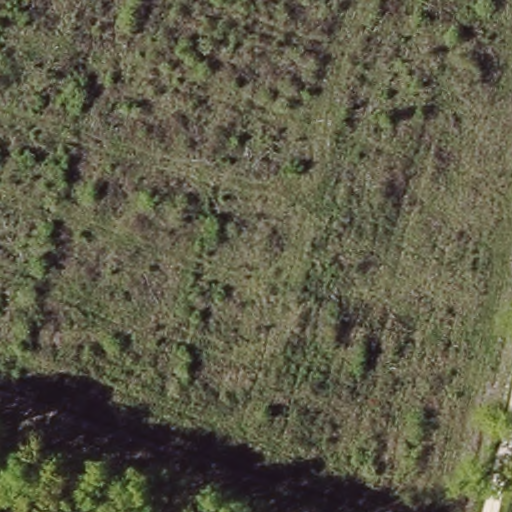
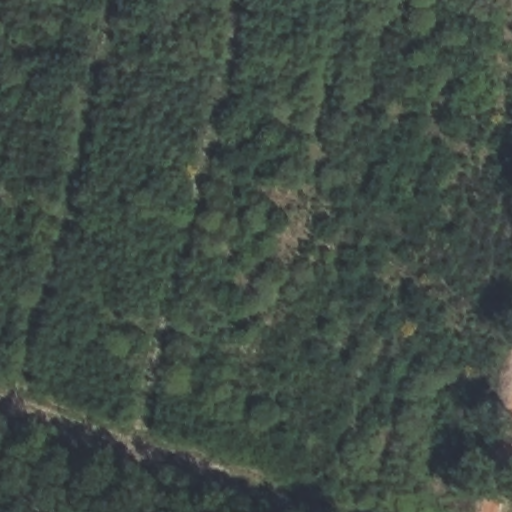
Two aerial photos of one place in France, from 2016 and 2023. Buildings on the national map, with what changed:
[]

